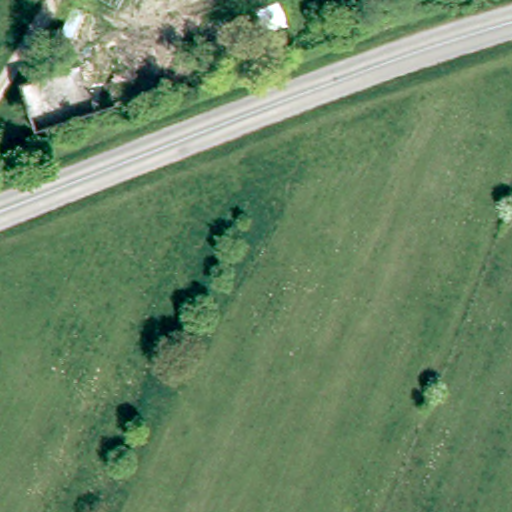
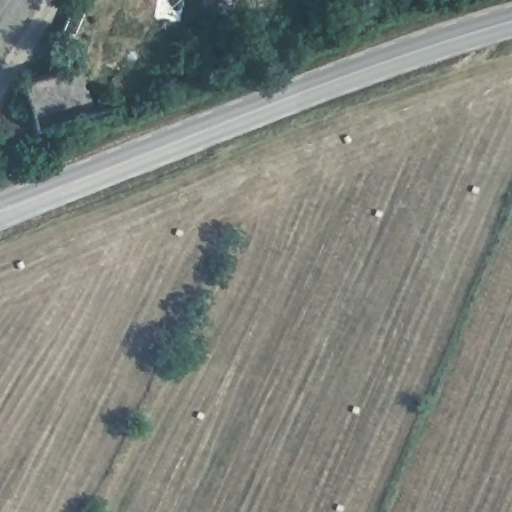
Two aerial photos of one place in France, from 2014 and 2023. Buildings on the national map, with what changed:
unchanged [(8,136),(29,128),(38,150),(6,163),(0,145),(0,144),(9,140),(8,136)]

